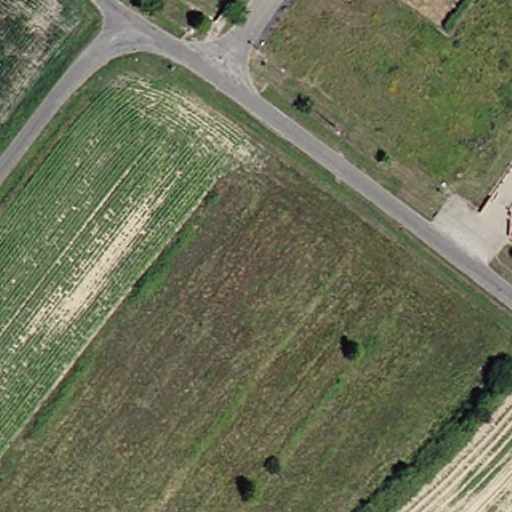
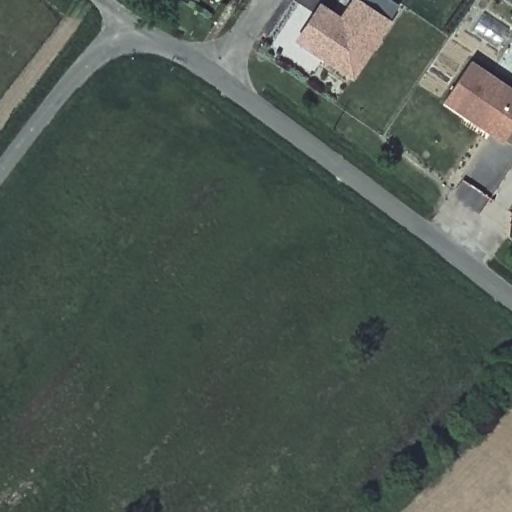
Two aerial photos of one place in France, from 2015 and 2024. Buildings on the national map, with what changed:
new [(392,21),(353,81),(295,41),(320,4),(341,16),(351,0),(359,0),(392,21)]
new [(512,128),(502,141),(443,101),(471,61),(512,88),(512,128)]

